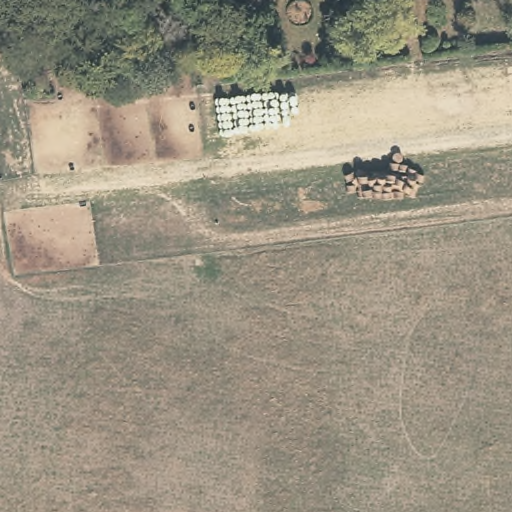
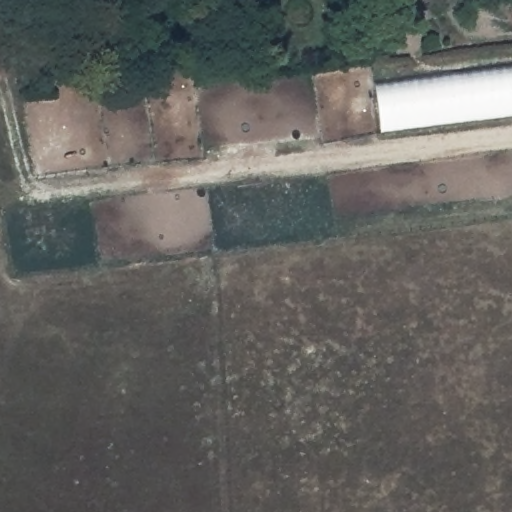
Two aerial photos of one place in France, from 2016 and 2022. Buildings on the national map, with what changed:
new [(374,79),(512,63),(512,114),(381,131),(374,79)]

